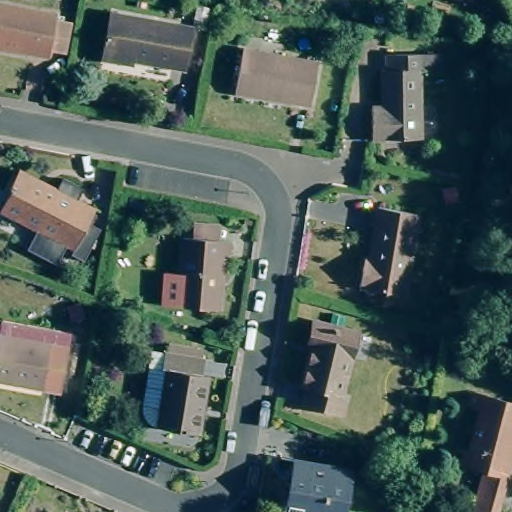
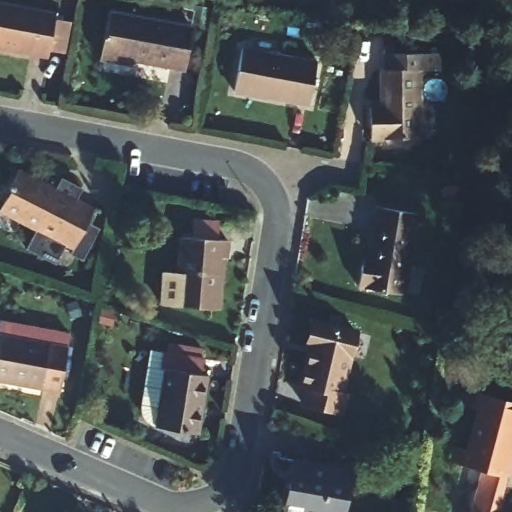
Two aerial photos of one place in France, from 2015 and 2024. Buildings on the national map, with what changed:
unchanged [(49,50),(48,57),(0,48),(0,4),(55,15),(54,20),(69,22),(63,53),(49,50)]
unchanged [(171,67),(133,60),(133,64),(121,62),(100,58),(108,13),(193,29),(186,64),(185,70),(171,67)]
unchanged [(241,49),(316,62),(309,107),(233,94),(241,49)]
unchanged [(370,105),(381,105),(381,70),(384,70),(384,54),(439,53),(439,70),(418,70),(419,139),(371,140),(370,105)]
unchanged [(36,184),(54,192),(61,179),(81,190),(75,201),(93,210),(73,250),(52,239),(46,250),(30,242),(37,229),(23,222),(22,224),(0,213),(0,208),(9,191),(8,190),(18,171),(38,182),(36,184)]
unchanged [(368,257),(377,207),(418,214),(404,295),(358,287),(361,266),(363,257),(368,257)]
unchanged [(200,223),(229,226),(228,240),(238,241),(236,257),(232,257),(228,310),(171,305),(173,272),(188,273),(191,237),(199,237),(200,223)]
unchanged [(344,394),(339,413),(301,403),(305,387),(300,386),(310,347),(305,346),(311,322),(355,333),(339,392),(344,394)]
unchanged [(43,383),(42,390),(0,382),(0,336),(50,346),(46,363),(51,364),(47,385),(43,383)]
unchanged [(156,426),(166,370),(161,369),(163,352),(166,352),(168,344),(201,350),(201,358),(203,358),(201,375),(206,376),(197,434),(156,427),(156,426)]
unchanged [(153,425),(149,422),(145,419),(143,415),(142,410),(142,405),(151,350),(163,352),(161,369),(166,370),(156,426),(153,425)]
unchanged [(479,407),(467,403),(469,392),(512,403),(512,455),(509,454),(494,512),(496,512),(470,512),(482,468),(451,460),(454,448),(468,452),(479,407)]
unchanged [(349,471),(343,512),(285,512),(294,462),(349,471)]

